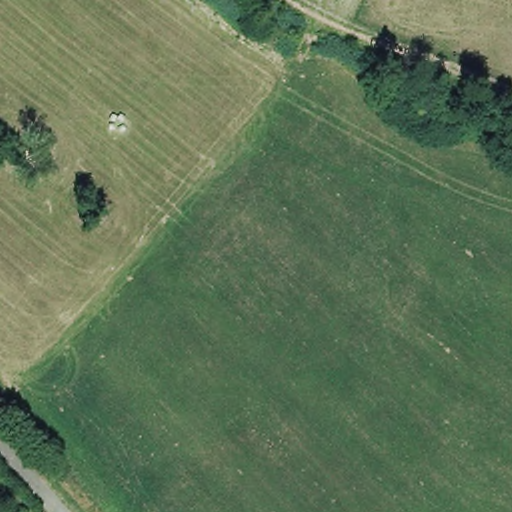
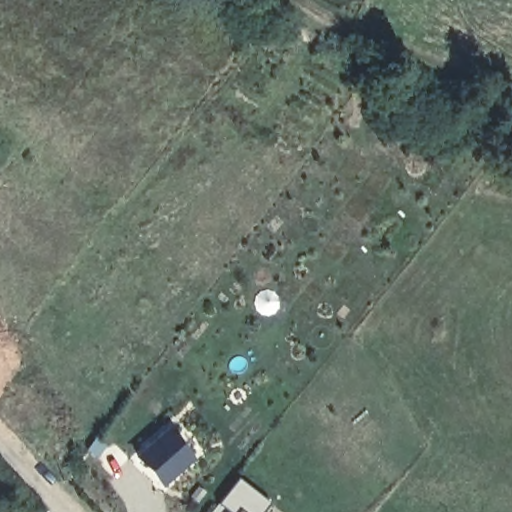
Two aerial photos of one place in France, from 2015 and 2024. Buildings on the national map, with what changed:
new [(196,461),(165,489),(139,461),(171,433),(196,461)]
new [(264,512),(227,512),(219,505),(238,480),(271,504),(264,512)]

